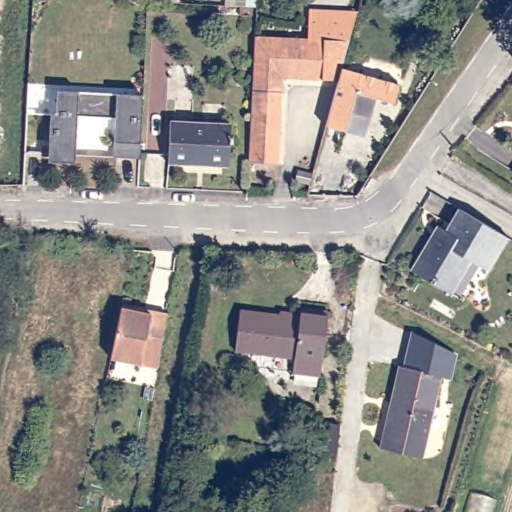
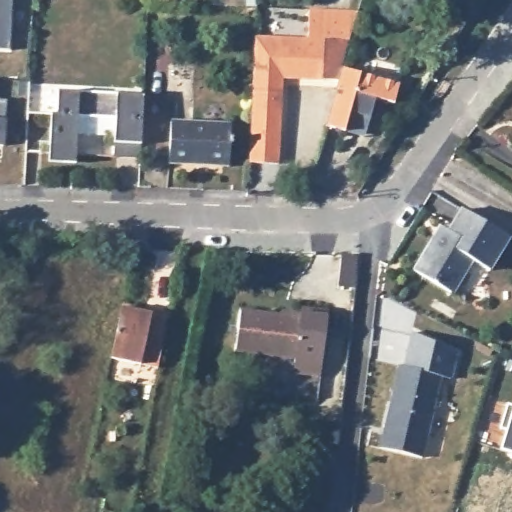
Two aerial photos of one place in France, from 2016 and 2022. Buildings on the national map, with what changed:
new [(9,50),(0,49),(0,0),(12,0),(9,50)]
unchanged [(147,2),(148,0),(179,0),(179,4),(147,2)]
unchanged [(357,11),(348,40),(307,39),(307,8),(357,11)]
unchanged [(307,39),(348,40),(341,68),(338,80),(282,78),(278,164),(248,163),(255,36),(307,39)]
unchanged [(325,126),(338,80),(341,68),(399,85),(393,104),(375,99),(370,118),(364,137),(344,132),(325,126)]
unchanged [(24,146),(26,113),(50,114),(55,115),(57,91),(143,96),(139,160),(112,158),(115,120),(77,118),(75,156),(48,154),(24,153),(24,146)]
new [(4,121),(4,147),(0,146),(0,99),(5,100),(4,121)]
unchanged [(231,124),(228,167),(166,163),(169,121),(231,124)]
unchanged [(295,180),(298,169),(312,173),(309,183),(295,180)]
unchanged [(512,236),(512,252),(498,275),(476,262),(456,295),(423,275),(444,240),(450,230),(458,235),(472,213),(512,236)]
unchanged [(121,302),(150,308),(151,305),(168,309),(166,325),(158,365),(140,361),(110,353),(121,302)]
unchanged [(320,377),(293,373),(295,358),(235,350),(240,309),(300,316),(301,307),(328,310),(320,377)]
unchanged [(404,367),(411,333),(457,354),(453,378),(452,378),(441,375),(404,367)]
unchanged [(421,457),(380,448),(383,435),(387,436),(389,428),(385,427),(399,366),(404,367),(441,375),(421,457)]
unchanged [(339,439),(336,458),(319,456),(321,429),(339,431),(339,439)]

